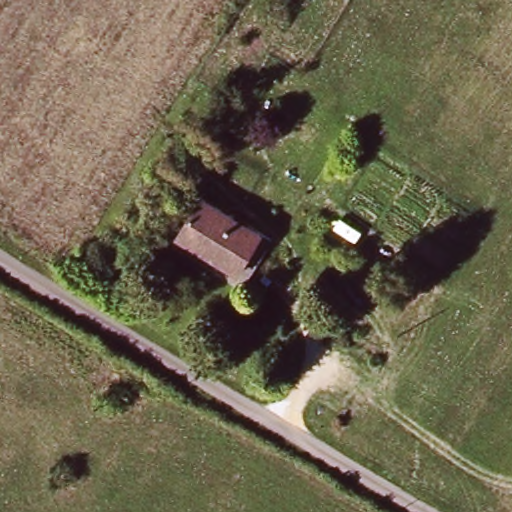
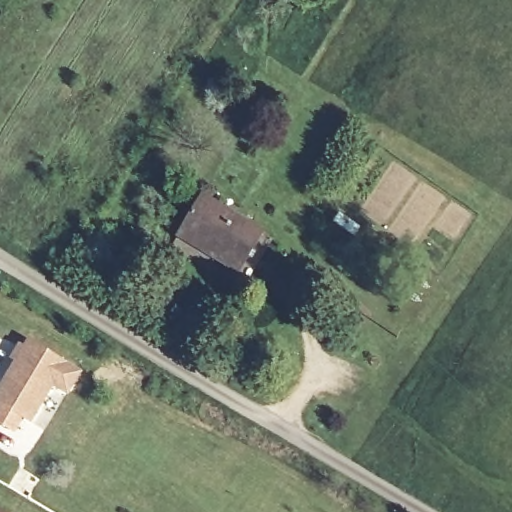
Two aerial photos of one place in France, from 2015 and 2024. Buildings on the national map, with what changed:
unchanged [(237,275),(179,238),(202,201),(260,238),(237,275)]
new [(10,359),(19,343),(25,346),(27,340),(83,373),(67,398),(53,389),(32,425),(0,405),(0,385),(14,362),(10,359)]
new [(0,512),(0,511),(1,512),(0,512)]

